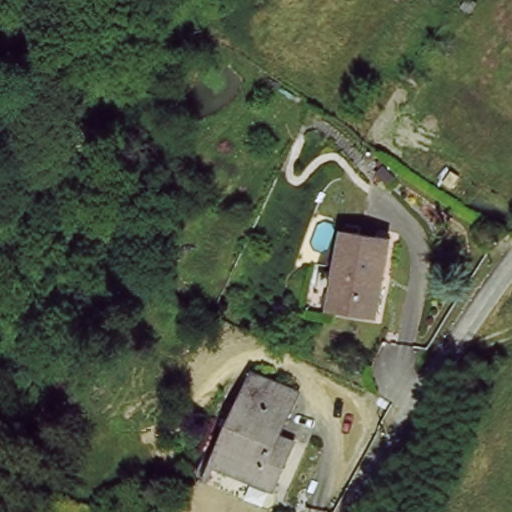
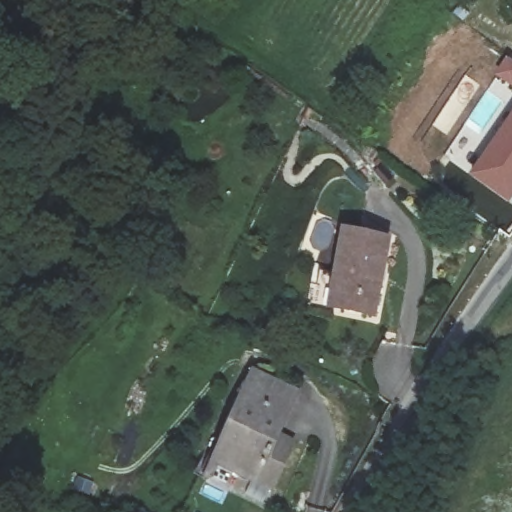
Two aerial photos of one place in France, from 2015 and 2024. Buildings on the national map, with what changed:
new [(512,117),(512,201),(509,206),(469,179),(512,117)]
unchanged [(339,277),(333,275),(341,233),(387,241),(374,320),(333,312),(339,277)]
unchanged [(288,456),(270,490),(213,462),(213,460),(257,370),(300,390),(281,431),(296,438),(288,456)]

